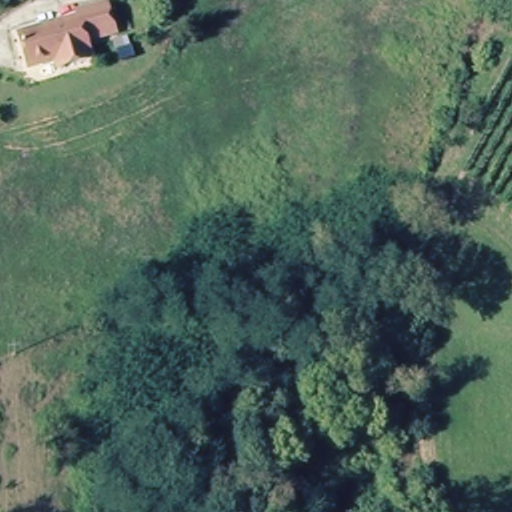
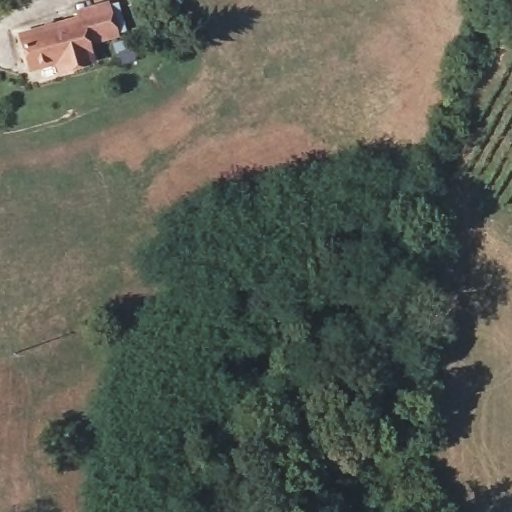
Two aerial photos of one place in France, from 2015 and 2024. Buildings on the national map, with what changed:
unchanged [(104,1),(104,0),(110,0),(104,1)]
unchanged [(112,41),(88,44),(90,69),(58,74),(56,67),(26,70),(22,36),(82,28),(82,20),(109,17),(112,41)]

